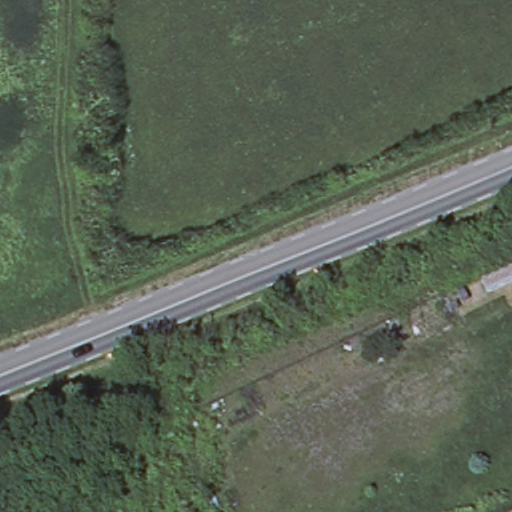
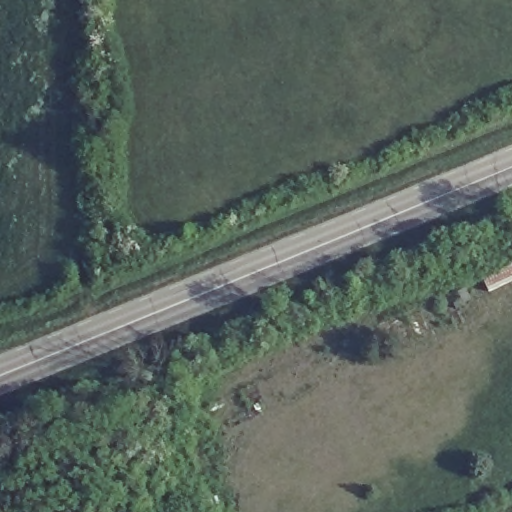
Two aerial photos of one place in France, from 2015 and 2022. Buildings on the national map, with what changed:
unchanged [(486,287),(481,275),(512,260),(512,275),(486,287)]

